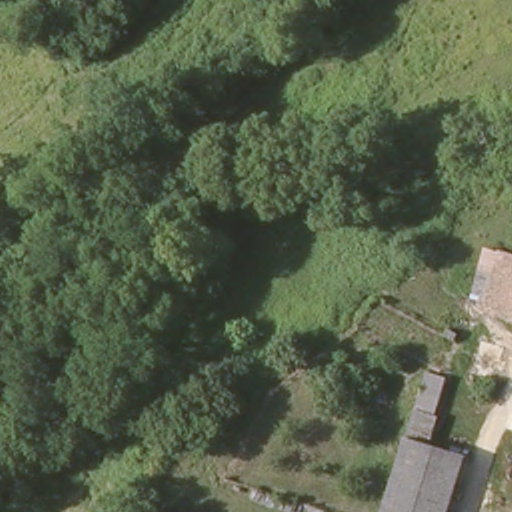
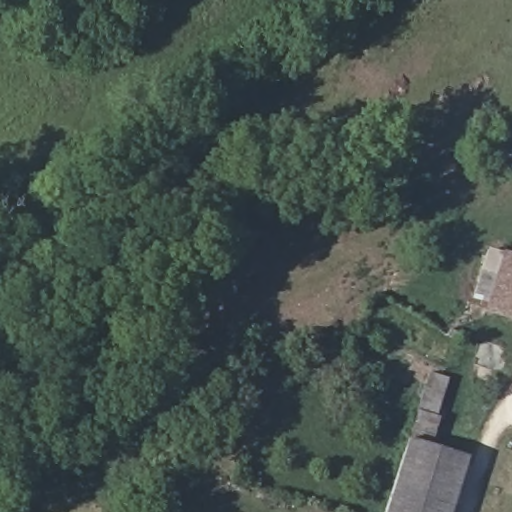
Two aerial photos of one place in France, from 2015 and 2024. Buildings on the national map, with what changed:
unchanged [(504,252),(512,254),(512,321),(486,315),(504,252)]
unchanged [(449,379),(438,419),(430,447),(467,459),(450,512),(385,512),(431,375),(449,379)]

